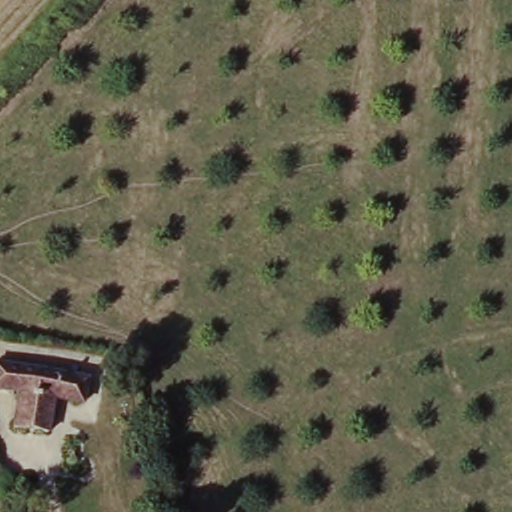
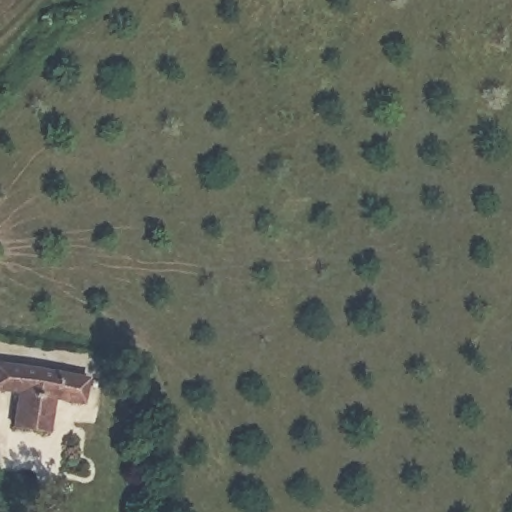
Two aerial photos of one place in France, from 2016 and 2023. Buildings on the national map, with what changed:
unchanged [(25,391),(0,390),(0,363),(32,366),(25,391)]
unchanged [(25,391),(32,366),(90,372),(88,402),(57,401),(57,436),(19,434),(25,391)]

